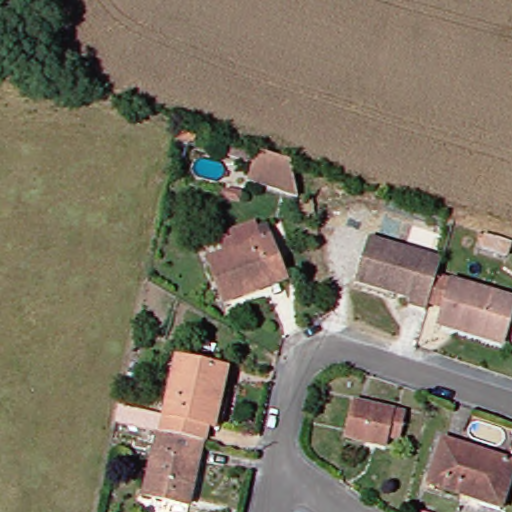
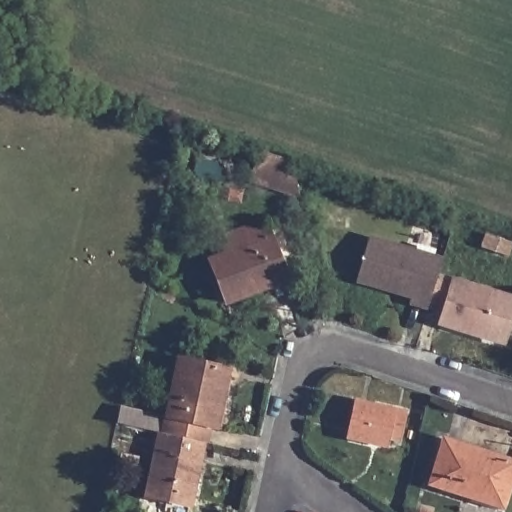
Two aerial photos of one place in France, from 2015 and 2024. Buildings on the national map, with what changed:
unchanged [(272,168),(249,160),(252,150),(275,159),(276,155),(307,166),(314,200),(267,185),(272,168)]
unchanged [(242,200),(225,197),(227,189),(243,192),(242,200)]
unchanged [(281,240),(295,277),(254,293),(257,300),(238,307),(221,265),(239,258),(233,241),(267,229),(272,244),(281,240)]
unchanged [(512,256),(483,246),(487,234),(512,243),(512,255),(512,256)]
unchanged [(435,270),(426,300),(424,306),(407,301),(408,296),(353,281),(365,236),(439,257),(435,270)]
unchanged [(435,270),(512,293),(512,296),(500,338),(446,321),(450,306),(426,300),(435,270)]
unchanged [(190,357),(240,369),(236,388),(229,387),(217,442),(216,442),(174,433),(190,357)]
unchanged [(412,440),(380,432),(378,444),(359,440),(367,400),(417,412),(412,440)]
unchanged [(174,433),(216,442),(202,506),(156,496),(170,432),(174,433)]
unchanged [(511,507),(437,483),(452,440),(512,460),(512,504),(511,507)]

